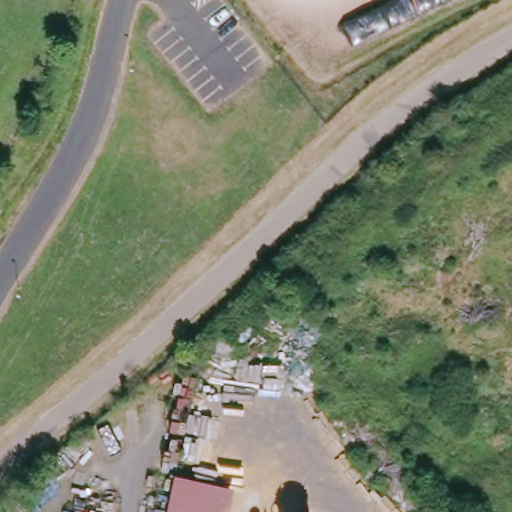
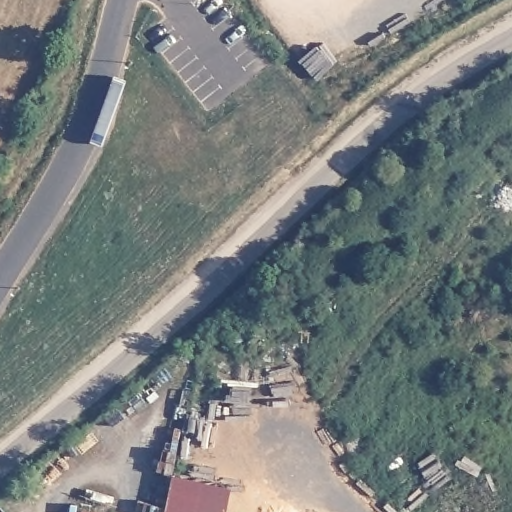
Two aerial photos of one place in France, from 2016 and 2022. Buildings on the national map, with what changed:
unchanged [(233,489),(230,512),(161,512),(171,475),(233,489)]

